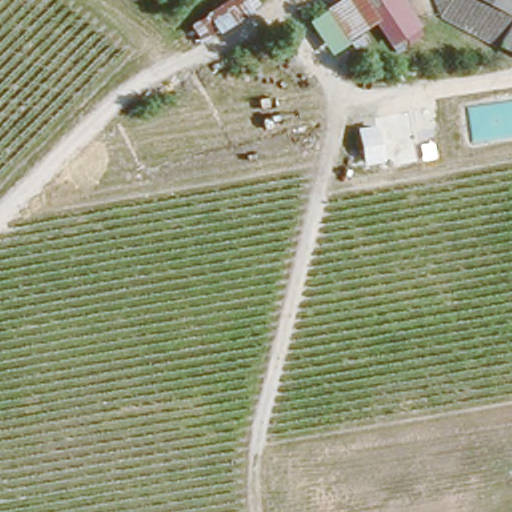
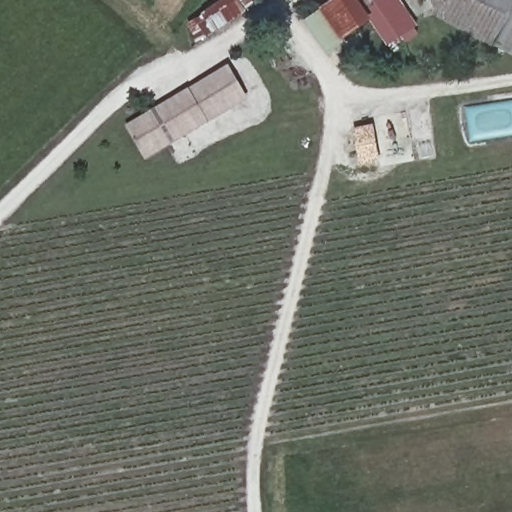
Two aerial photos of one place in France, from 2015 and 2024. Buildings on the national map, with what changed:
unchanged [(198,38),(185,19),(214,0),(253,0),(198,38)]
unchanged [(418,25),(393,49),(391,51),(368,22),(357,31),(363,40),(350,49),(345,41),(330,52),(307,18),(331,0),(400,0),(418,25)]
unchanged [(510,64),(425,11),(422,0),(512,0),(512,61),(510,64)]
new [(146,163),(126,126),(230,67),(249,101),(146,163)]
new [(380,160),(359,164),(353,127),(374,123),(380,160)]

